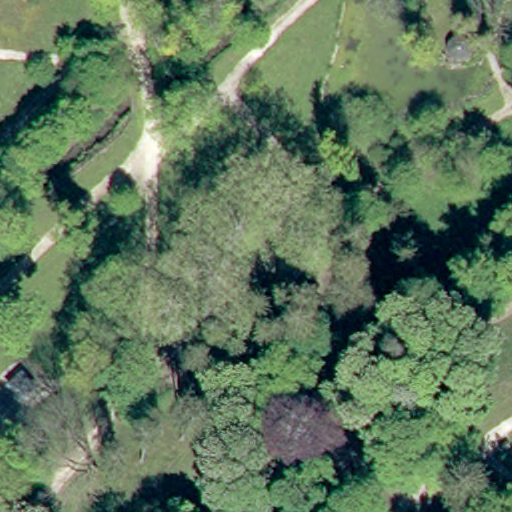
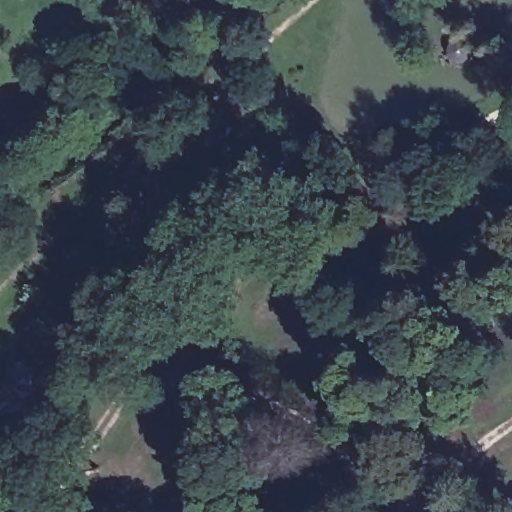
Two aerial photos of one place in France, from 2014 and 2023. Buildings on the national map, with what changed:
unchanged [(442,56),(439,53),(438,50),(438,46),(438,42),(440,39),(442,36),(445,34),(449,33),(452,33),(456,35),(459,37),(461,40),(462,43),(462,47),(461,51),(459,54),(457,56),(454,58),(453,58),(450,59),(446,58),(445,58),(442,56)]
unchanged [(10,390),(23,380),(36,396),(23,406),(10,390)]

